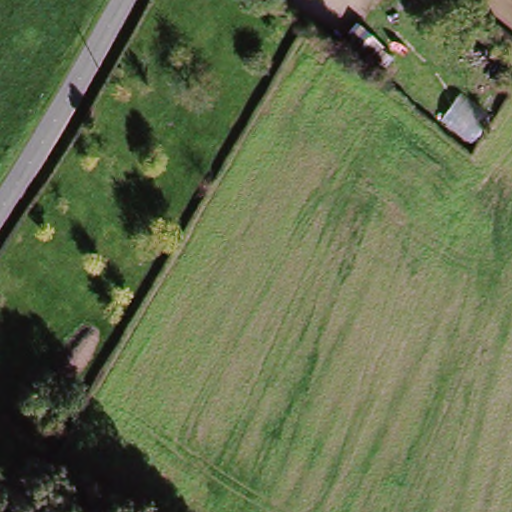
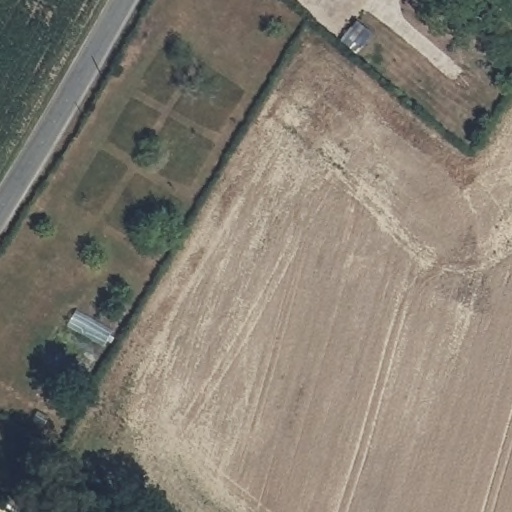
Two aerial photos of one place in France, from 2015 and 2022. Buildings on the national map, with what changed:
unchanged [(393,5),(386,0),(398,0),(393,5)]
unchanged [(393,61),(383,77),(340,36),(352,22),(393,61)]

